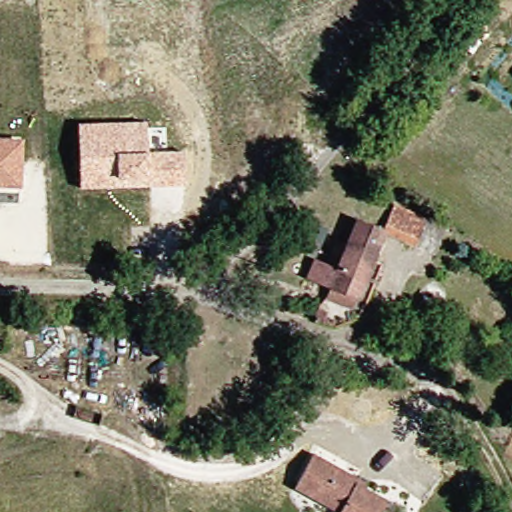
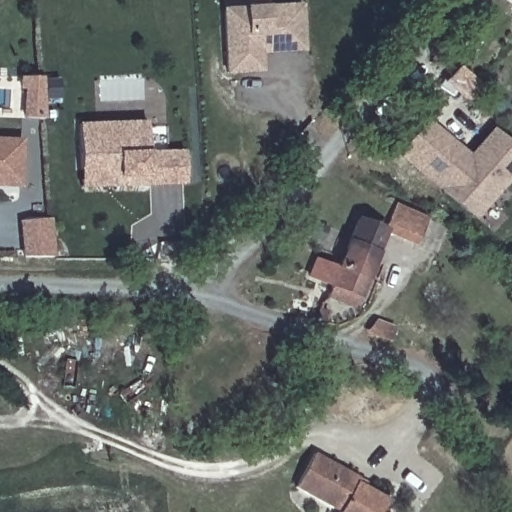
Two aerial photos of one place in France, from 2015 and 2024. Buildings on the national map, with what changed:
new [(244,0),(268,0),(268,5),(302,4),(305,53),(262,55),(264,75),(226,77),(221,10),(222,10),(244,7),(244,0)]
unchanged [(146,121),(146,152),(183,151),(184,185),(79,189),(77,124),(146,121)]
new [(463,156),(487,131),(512,153),(512,169),(471,216),(396,153),(423,121),(463,156)]
unchanged [(0,187),(0,138),(22,140),(21,187),(0,187)]
unchanged [(323,296),(328,286),(301,273),(308,260),(331,270),(351,223),(376,235),(389,207),(422,224),(410,250),(382,237),(354,299),(353,298),(348,308),(323,296)]
unchanged [(329,511),(285,485),(305,452),(349,478),(346,483),(376,500),(370,512),(329,512),(329,511)]

